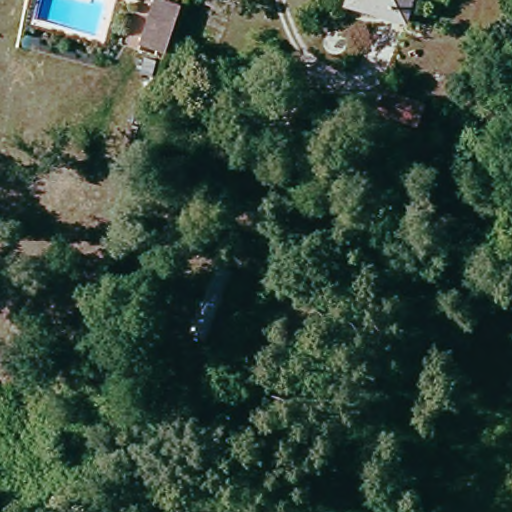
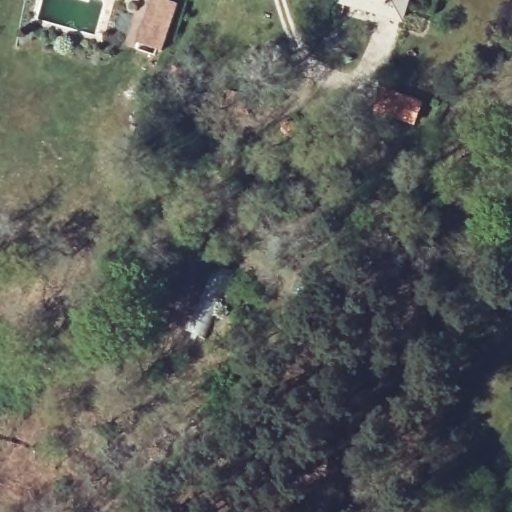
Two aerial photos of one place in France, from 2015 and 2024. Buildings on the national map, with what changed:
unchanged [(163,0),(182,0),(188,2),(179,26),(172,50),(149,42),(150,39),(163,0)]
unchanged [(376,0),(420,0),(416,12),(376,0)]
unchanged [(375,68),(415,82),(410,96),(407,102),(368,88),(371,81),(375,68)]

